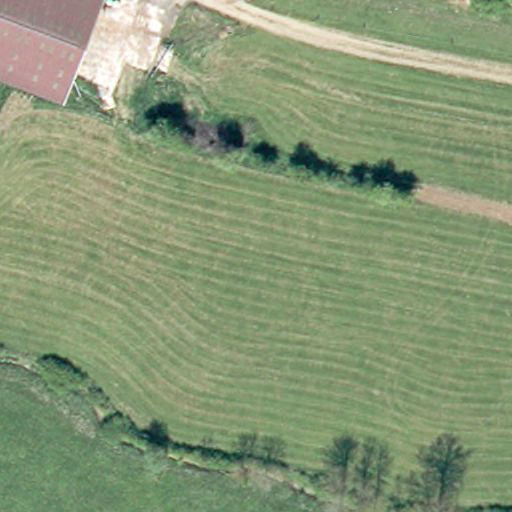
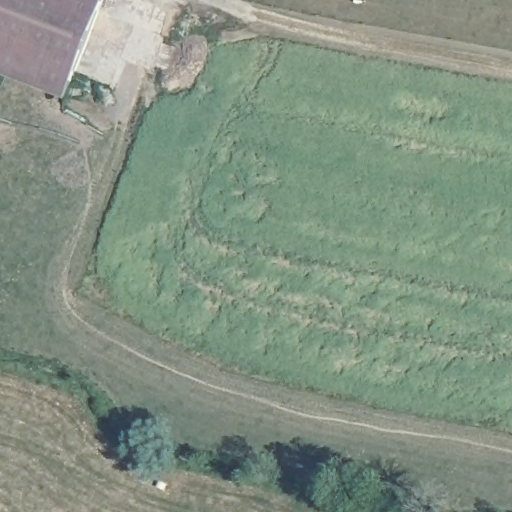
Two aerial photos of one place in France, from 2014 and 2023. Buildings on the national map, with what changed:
unchanged [(78,74),(70,96),(0,69),(0,0),(107,0),(78,74)]

